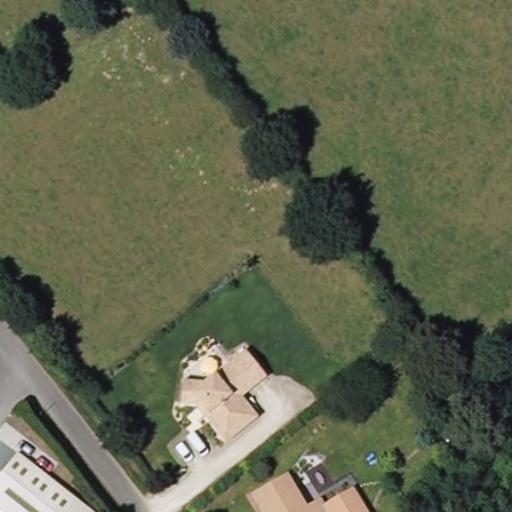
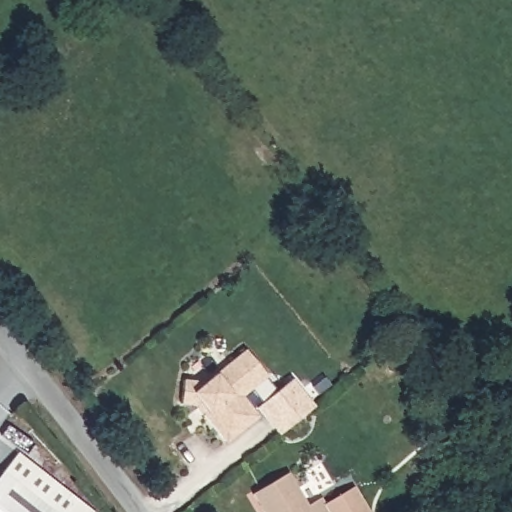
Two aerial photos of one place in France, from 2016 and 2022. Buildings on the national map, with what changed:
unchanged [(267,377),(244,397),(259,417),(224,445),(201,413),(179,406),(183,378),(210,378),(245,350),(267,377)]
new [(315,407),(278,435),(258,406),(292,379),(315,407)]
unchanged [(96,512),(0,512),(0,475),(17,452),(96,512)]
unchanged [(309,501),(323,494),(327,500),(357,484),(373,512),(268,512),(255,490),(292,470),(309,501)]

